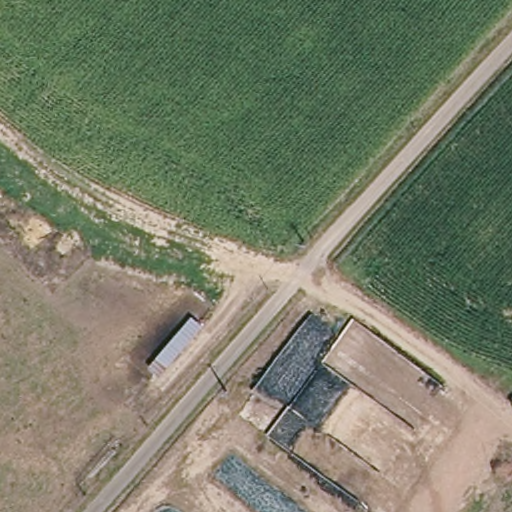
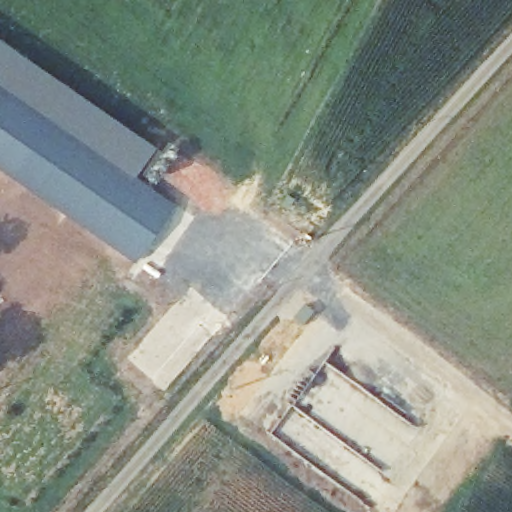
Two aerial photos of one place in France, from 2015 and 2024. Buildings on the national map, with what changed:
new [(0,168),(0,39),(155,147),(134,176),(173,203),(134,260),(0,168)]
demolished [(197,314),(213,329),(170,380),(150,369),(197,314)]

